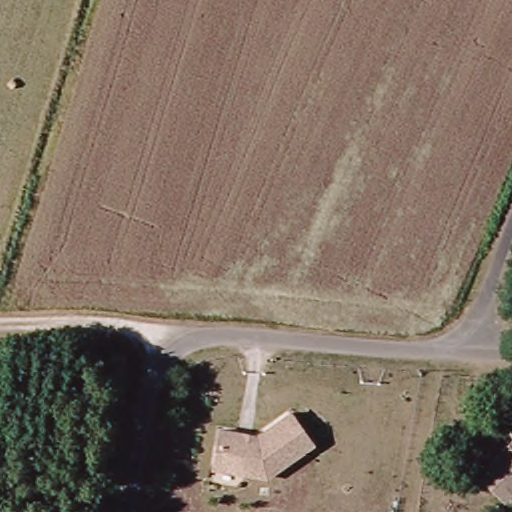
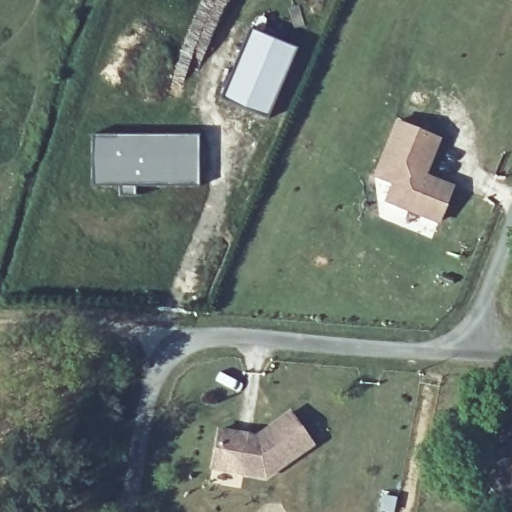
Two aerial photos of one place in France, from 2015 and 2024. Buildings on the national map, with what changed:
new [(266,117),(221,99),(249,29),(295,48),(266,117)]
new [(394,124),(435,141),(419,182),(429,186),(431,181),(449,188),(435,224),(383,202),(390,185),(372,177),(394,124)]
new [(198,186),(135,186),(135,195),(121,195),(120,185),(93,186),(93,136),(197,136),(198,186)]
unchanged [(265,481),(213,471),(219,433),(258,439),(291,417),(313,447),(265,481)]
unchanged [(504,497),(478,473),(512,439),(512,490),(504,497)]

